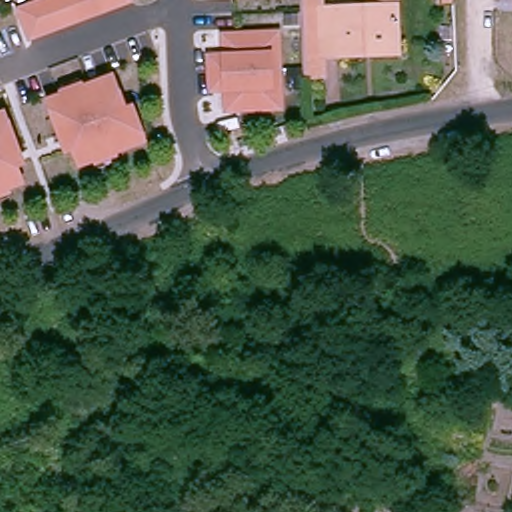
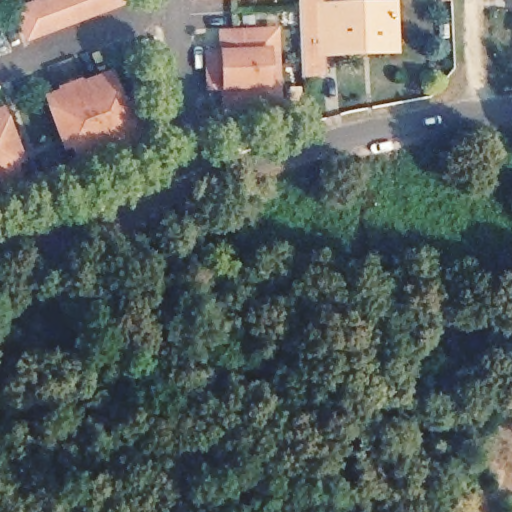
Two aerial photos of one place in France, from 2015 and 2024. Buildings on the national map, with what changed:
unchanged [(127,0),(29,37),(19,9),(43,0),(127,0)]
unchanged [(327,0),(327,7),(328,57),(328,78),(328,80),(309,81),(309,77),(305,0),(327,0)]
unchanged [(328,57),(327,7),(369,7),(369,0),(401,0),(401,7),(402,44),(403,54),(359,56),(328,57)]
unchanged [(272,105),(225,108),(225,87),(210,88),(209,55),(224,54),(223,33),(269,31),(277,30),(277,51),(279,84),(279,105),(272,105)]
unchanged [(60,134),(48,101),(112,76),(124,109),(131,106),(144,139),(79,164),(73,147),(66,149),(60,134)]
unchanged [(22,157),(15,160),(21,177),(0,186),(0,110),(4,109),(16,142),(22,157)]
unchanged [(258,142),(277,135),(279,142),(260,149),(258,142)]
unchanged [(240,156),(234,158),(231,151),(249,145),(252,152),(240,156)]

